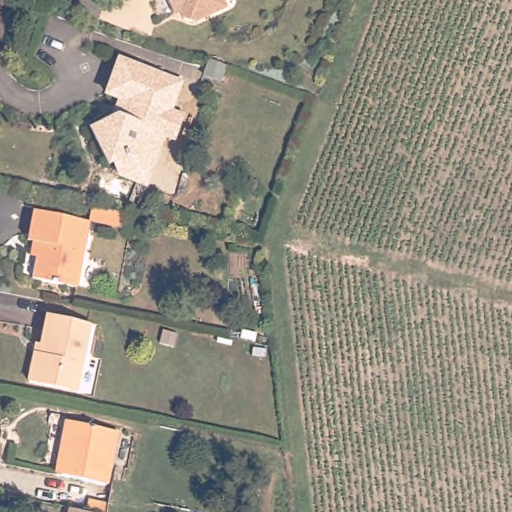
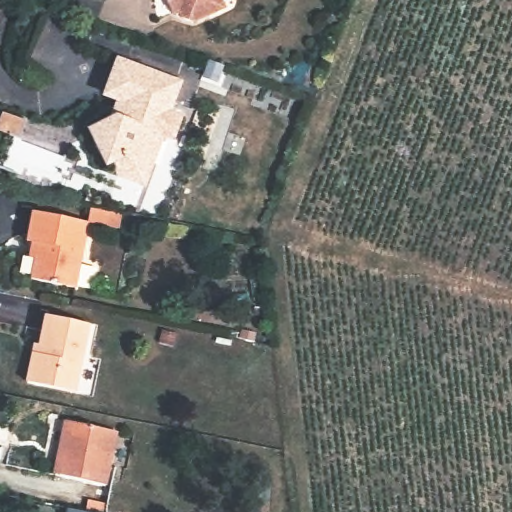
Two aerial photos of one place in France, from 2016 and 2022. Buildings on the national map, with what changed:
unchanged [(211,15),(194,22),(185,19),(181,10),(175,13),(169,0),(223,0),(226,7),(211,15)]
unchanged [(123,177),(118,164),(112,167),(96,132),(122,120),(125,121),(131,104),(112,97),(124,63),(184,85),(174,115),(186,119),(178,140),(168,136),(156,167),(149,186),(123,177)]
unchanged [(36,209),(93,222),(79,287),(33,276),(41,243),(29,240),(36,209)]
unchanged [(37,347),(42,348),(50,315),(92,327),(78,387),(31,374),(37,347)]
unchanged [(71,422),(121,433),(110,484),(60,473),(71,422)]
unchanged [(72,510),(85,512),(72,512),(72,510)]

